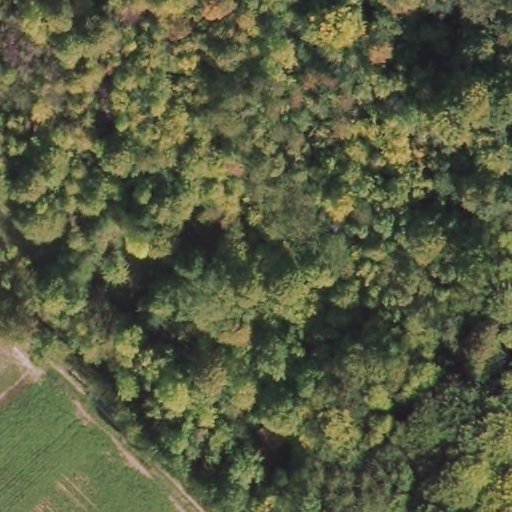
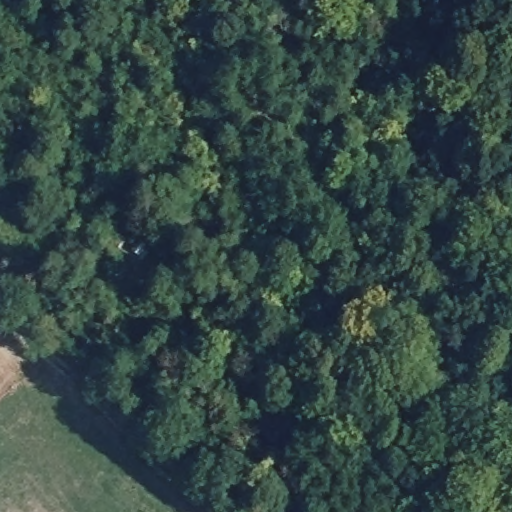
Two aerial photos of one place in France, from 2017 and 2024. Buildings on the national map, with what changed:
unchanged [(271,445),(256,427),(271,415),(285,433),(271,445)]

